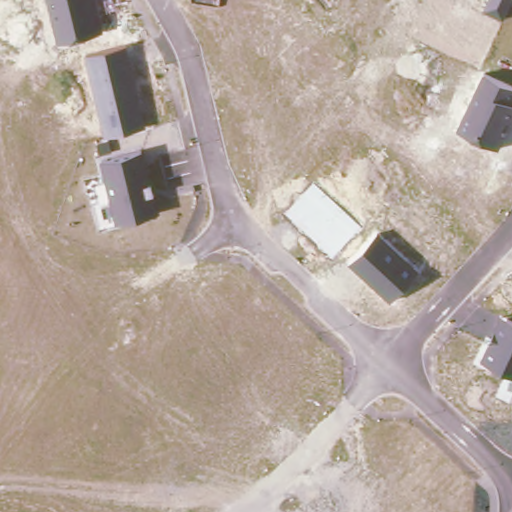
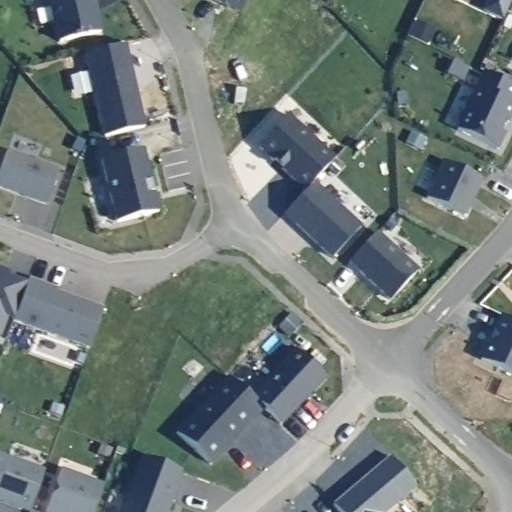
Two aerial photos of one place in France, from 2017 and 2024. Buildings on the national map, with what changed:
unchanged [(46,0),(96,0),(104,31),(57,42),(46,0)]
new [(239,18),(200,0),(248,0),(239,18)]
unchanged [(503,19),(482,10),(486,0),(511,0),(503,19)]
unchanged [(126,45),(145,127),(104,137),(84,55),(126,45)]
unchanged [(512,105),(512,117),(497,149),(456,129),(483,70),(512,85),(512,104),(512,105)]
new [(336,157),(310,188),(308,191),(259,145),(288,111),(336,157)]
new [(58,175),(45,210),(0,194),(0,173),(6,156),(58,175)]
unchanged [(139,156),(143,172),(145,171),(156,218),(115,228),(100,165),(139,156)]
new [(479,184),(462,221),(424,204),(442,167),(479,184)]
unchanged [(359,232),(330,262),(283,219),(310,188),(359,232)]
unchanged [(377,230),(419,269),(390,301),(348,262),(377,230)]
new [(13,326),(6,324),(0,339),(0,277),(8,280),(7,282),(26,290),(13,326)]
new [(88,354),(13,326),(26,290),(28,284),(57,294),(56,297),(103,314),(88,354)]
unchanged [(488,348),(500,320),(505,323),(512,326),(512,380),(480,365),(488,348)]
new [(261,413),(250,403),(294,354),(323,380),(279,428),(261,413)]
new [(227,381),(250,403),(261,413),(207,469),(174,438),(227,381)]
new [(385,512),(337,512),(332,506),(390,457),(417,485),(385,512)]
new [(168,512),(122,512),(141,461),(180,475),(168,512)]
new [(31,512),(16,512),(0,507),(0,484),(8,462),(44,475),(31,512)]
new [(47,512),(61,475),(103,490),(94,512),(47,512)]

